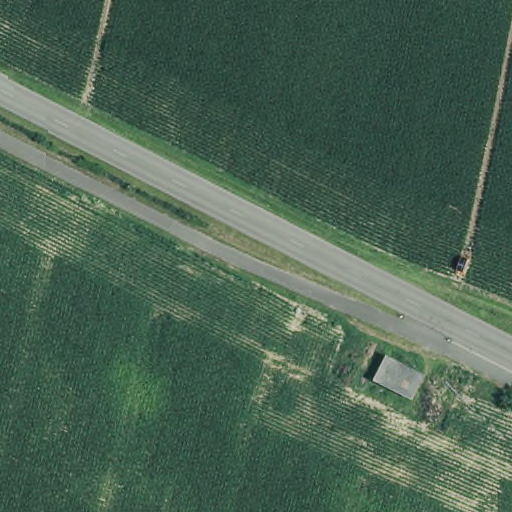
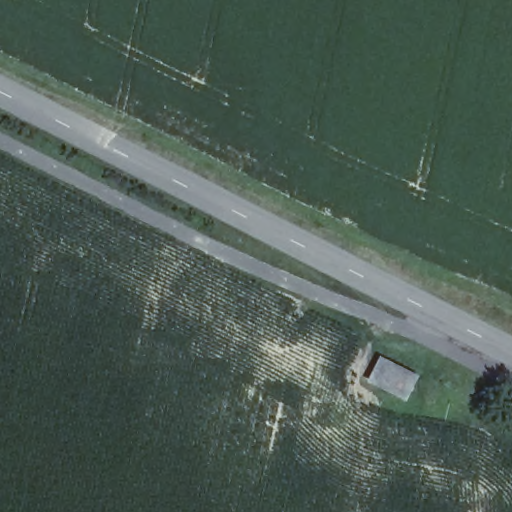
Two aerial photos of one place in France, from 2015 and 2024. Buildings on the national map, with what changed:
unchanged [(352,371),(363,350),(414,375),(403,397),(352,371)]

